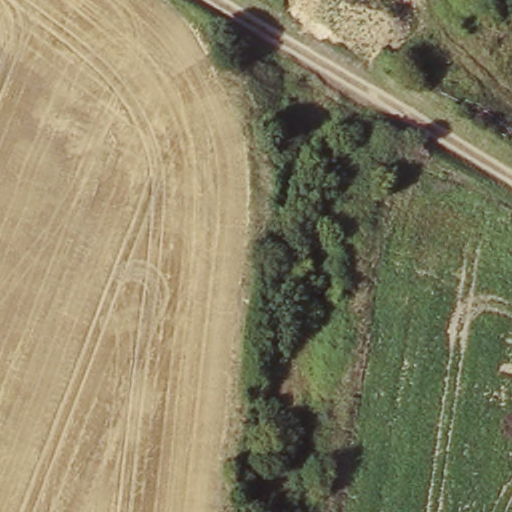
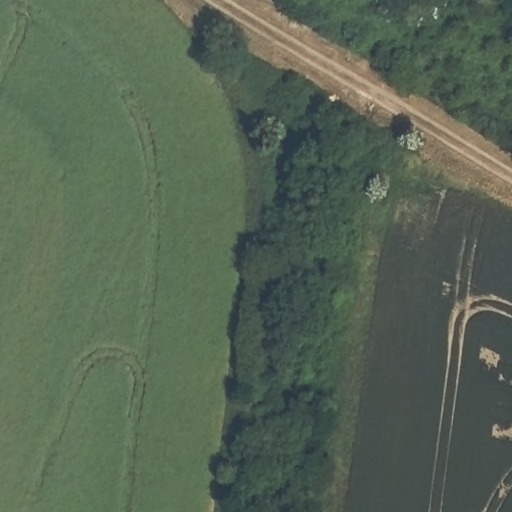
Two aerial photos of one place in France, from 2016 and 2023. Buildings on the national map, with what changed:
unchanged [(305,80),(302,124),(300,122),(300,135),(289,135),(288,141),(277,140),(280,118),(277,120),(282,79),(305,80)]

